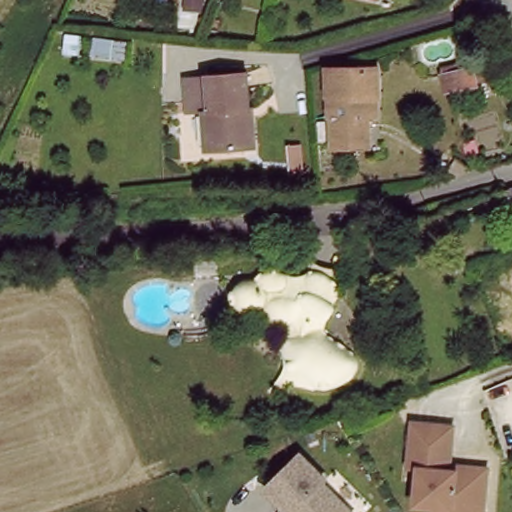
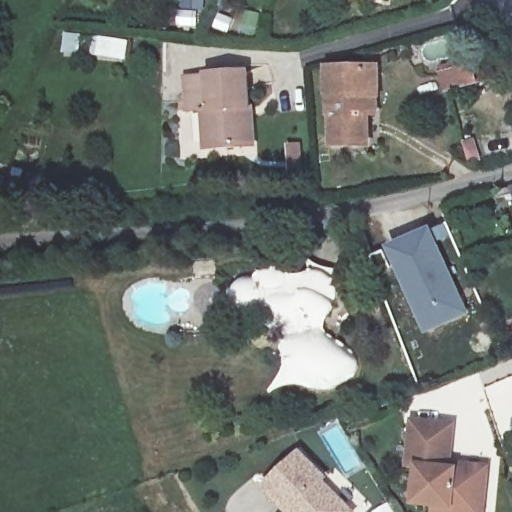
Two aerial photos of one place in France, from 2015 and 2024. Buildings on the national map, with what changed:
unchanged [(333,147),(329,69),(374,65),(377,108),(368,110),(370,141),(333,147)]
unchanged [(251,105),(257,103),(259,145),(205,148),(202,109),(184,110),(184,72),(207,70),(251,67),(251,105)]
unchanged [(443,100),(440,82),(472,76),(486,72),(490,90),(476,94),(448,98),(443,100)]
new [(512,187),(512,192),(510,188),(512,187)]
new [(512,209),(512,211),(511,209),(512,209)]
new [(432,228),(470,312),(427,335),(387,247),(432,228)]
unchanged [(342,326),(349,328),(354,330),(360,331),(364,335),(366,338),(368,342),(368,347),(366,353),(364,358),(360,362),(356,366),(351,369),(344,372),(337,373),(331,374),(326,374),(321,372),(316,366),(313,362),(302,341),(301,337),(296,333),(291,330),(286,326),(261,323),(251,328),(247,329),(235,325),(230,320),(226,315),(223,307),(223,300),(226,294),(231,289),(237,284),(244,282),(251,276),(255,274),(262,274),(271,274),(292,267),(304,270),(311,267),(315,267),(318,268),(328,275),(331,277),(332,281),(333,286),(339,299),(336,304),(323,311),(322,314),(329,325),(342,326)]
unchanged [(451,417),(448,456),(484,459),(482,512),(449,512),(448,507),(405,504),(409,462),(394,461),(398,412),(451,417)]
unchanged [(257,485),(291,450),(313,478),(316,474),(345,508),(342,512),(286,512),(257,485)]

